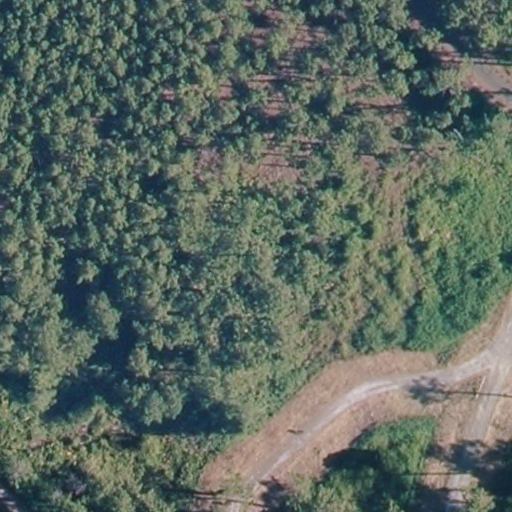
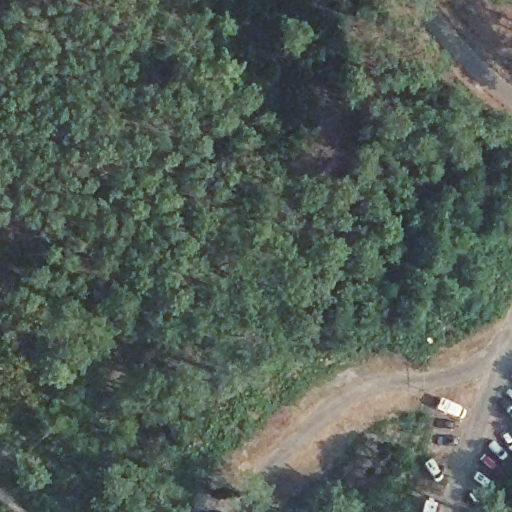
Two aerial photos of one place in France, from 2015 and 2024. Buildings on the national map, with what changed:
[]

